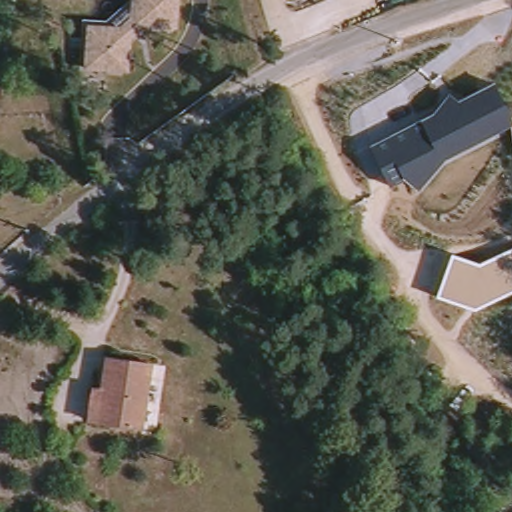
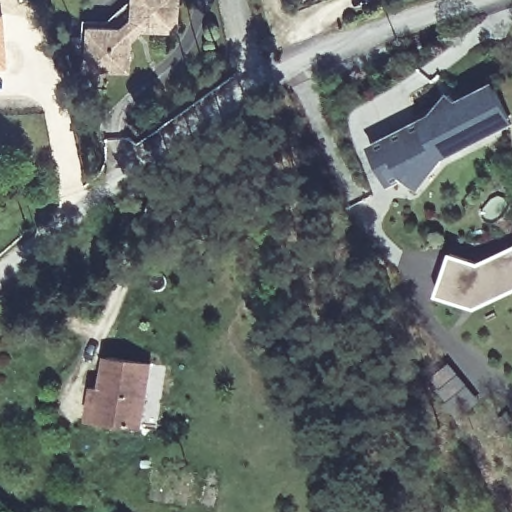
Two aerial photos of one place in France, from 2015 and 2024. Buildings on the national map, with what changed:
unchanged [(142,33),(131,43),(129,70),(123,75),(87,72),(90,31),(122,33),(134,22),(135,0),(179,0),(177,36),(142,33)]
new [(7,70),(0,70),(0,14),(2,14),(7,70)]
unchanged [(432,114),(450,94),(460,102),(495,84),(512,121),(512,124),(444,159),(422,190),(406,179),(390,186),(372,145),(432,114)]
unchanged [(481,264),(512,249),(512,294),(477,311),(437,298),(452,255),(481,264)]
unchanged [(95,387),(106,388),(110,360),(151,366),(142,427),(102,421),(90,420),(95,387)]

